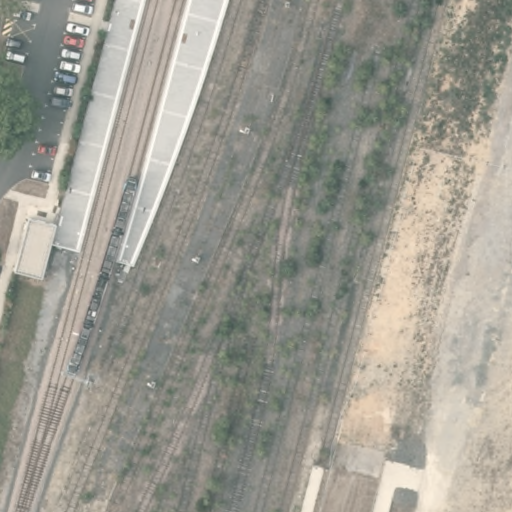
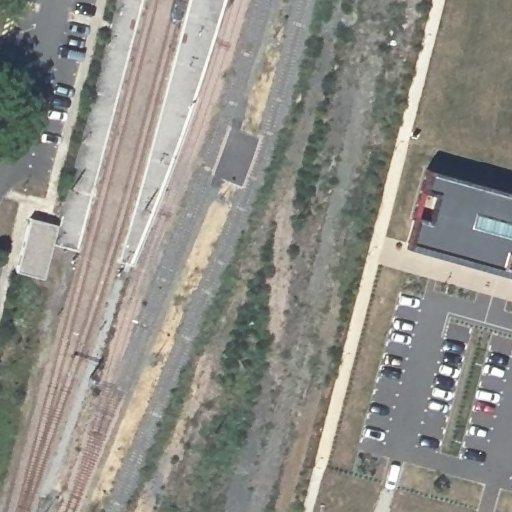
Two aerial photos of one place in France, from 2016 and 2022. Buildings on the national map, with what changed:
new [(425,169),(512,193),(512,277),(404,247),(425,169)]
new [(25,265),(36,222),(63,229),(49,283),(22,275),(25,265)]

